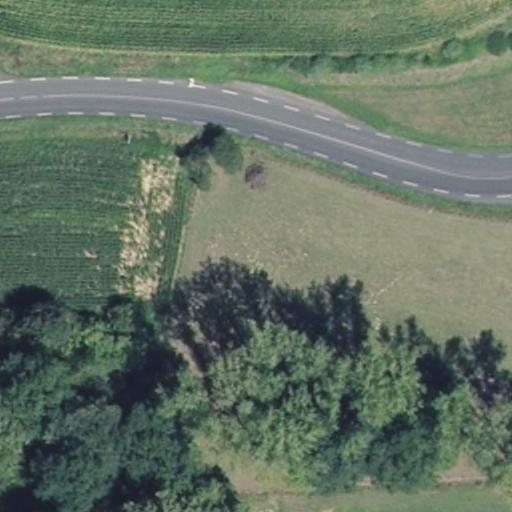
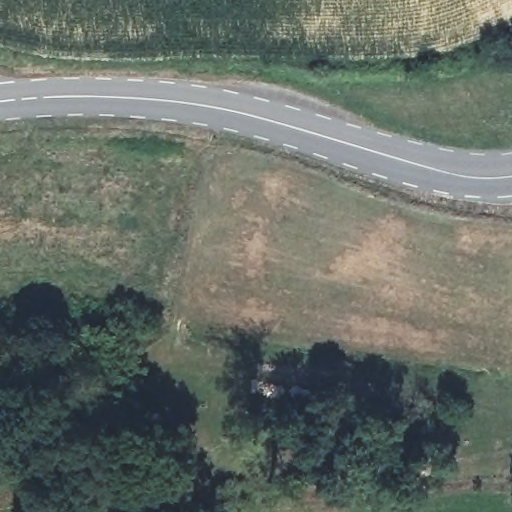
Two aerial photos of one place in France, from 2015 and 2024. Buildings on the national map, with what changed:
[]

